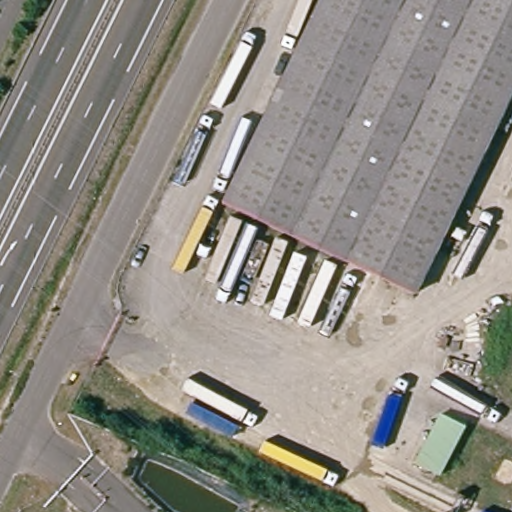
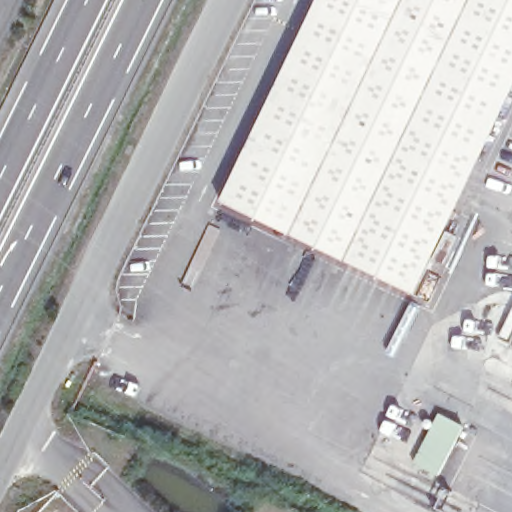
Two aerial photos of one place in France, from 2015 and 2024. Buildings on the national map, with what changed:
unchanged [(512,72),(404,297),(221,210),(324,0),(512,0),(512,72)]
unchanged [(442,417),(467,431),(443,480),(416,467),(442,417)]

